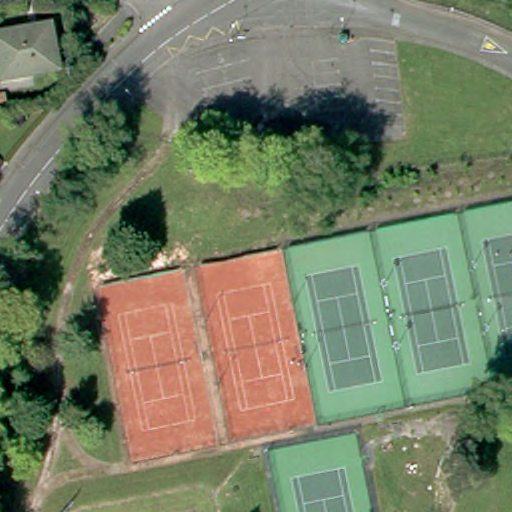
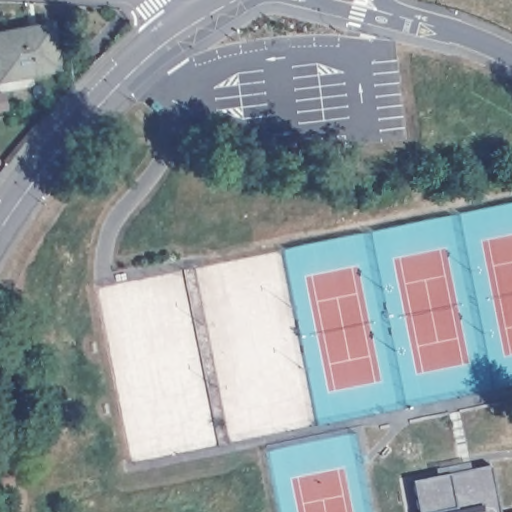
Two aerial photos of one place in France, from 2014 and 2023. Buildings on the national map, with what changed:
unchanged [(57,65),(0,75),(0,34),(49,25),(57,65)]
demolished [(431,466),(410,458),(418,436),(440,444),(431,466)]
new [(490,461),(500,512),(417,512),(411,477),(490,461)]

